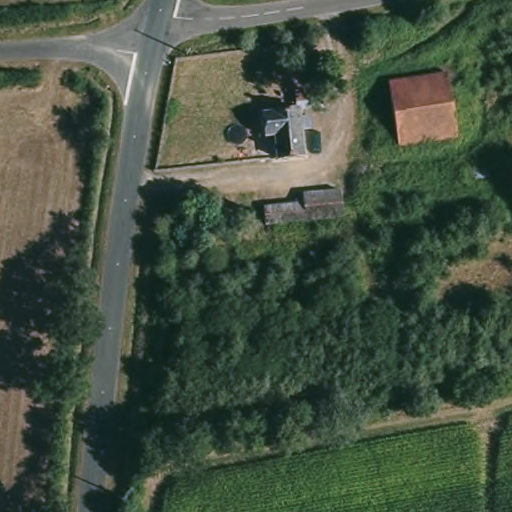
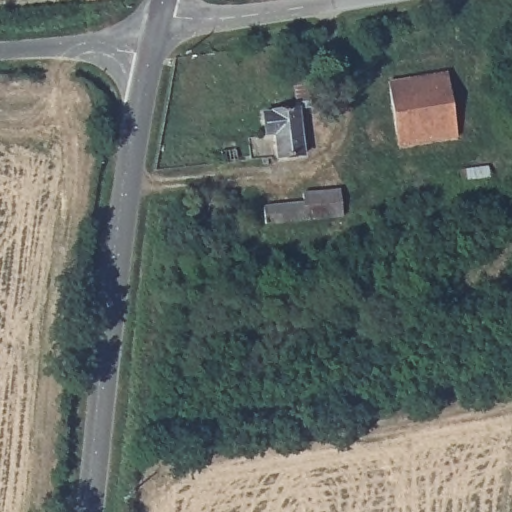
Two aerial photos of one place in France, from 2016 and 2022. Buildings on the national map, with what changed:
unchanged [(445,72),(457,140),(397,151),(386,84),(445,72)]
unchanged [(307,79),(312,107),(295,110),(291,81),(307,79)]
unchanged [(262,139),(260,118),(295,112),(302,159),(277,163),(272,137),(262,139)]
unchanged [(305,202),(304,196),(337,191),(342,217),(265,229),(262,208),(305,202)]

